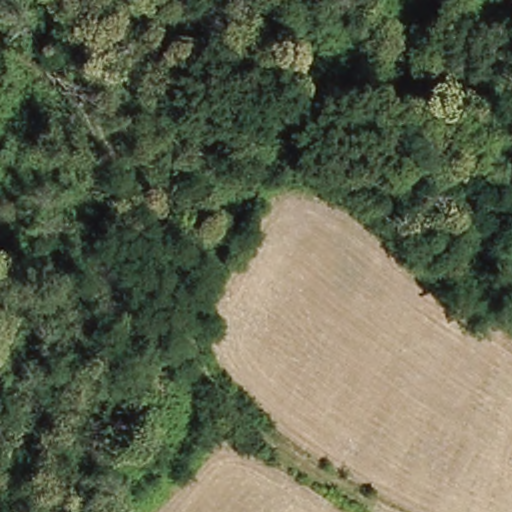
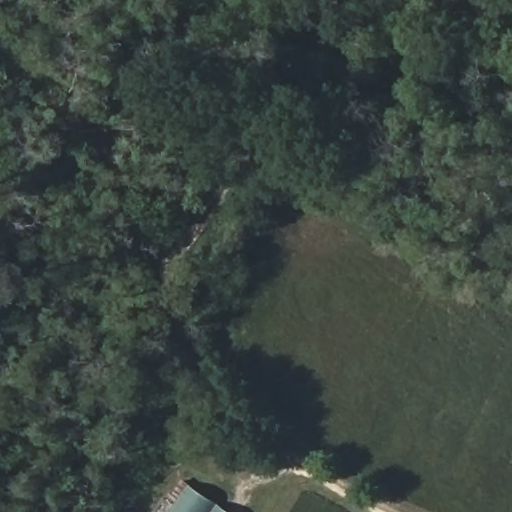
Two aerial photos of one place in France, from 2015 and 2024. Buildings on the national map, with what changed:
new [(224,512),(170,512),(188,486),(224,512)]

